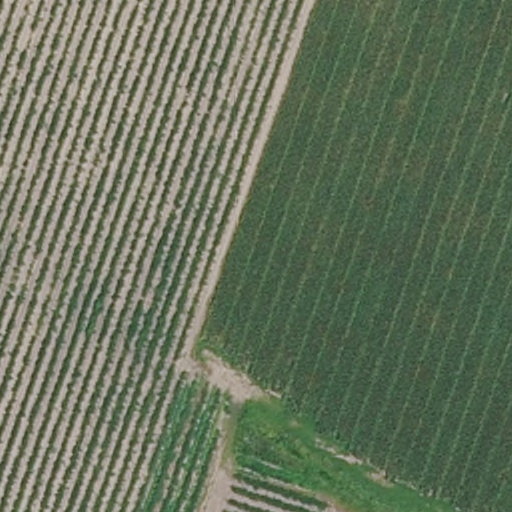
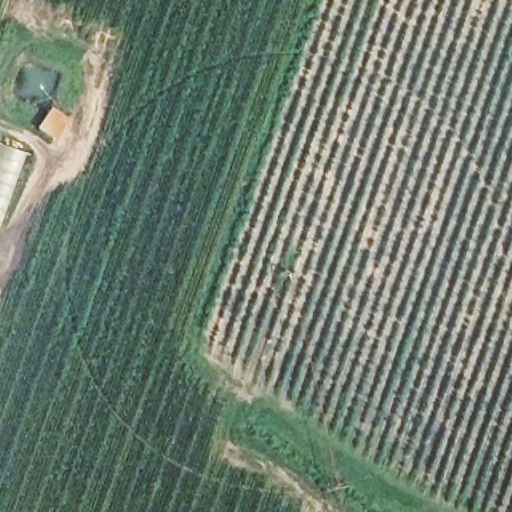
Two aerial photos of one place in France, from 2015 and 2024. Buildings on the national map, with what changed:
new [(50,106),(69,118),(55,141),(35,127),(50,106)]
new [(4,223),(0,231),(0,143),(28,153),(4,223)]

